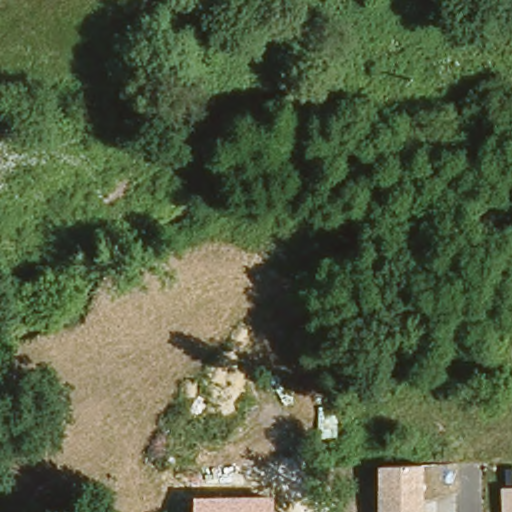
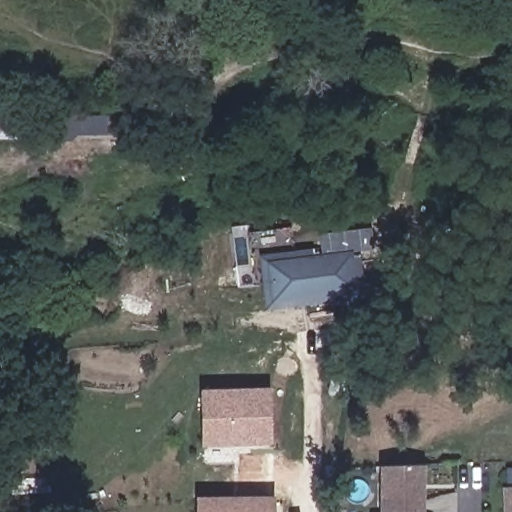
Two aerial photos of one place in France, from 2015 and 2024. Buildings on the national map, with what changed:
new [(441,248),(417,229),(445,194),(467,213),(441,248)]
new [(365,299),(263,310),(257,253),(359,243),(365,299)]
new [(272,444),(202,447),(200,389),(269,387),(272,444)]
unchanged [(426,512),(380,512),(381,466),(427,466),(426,512)]
unchanged [(505,488),(512,487),(512,512),(506,512),(505,488)]
unchanged [(275,512),(195,512),(195,496),(275,494),(275,512)]

